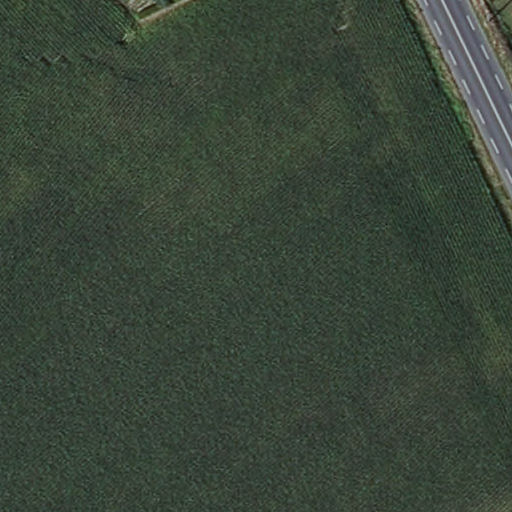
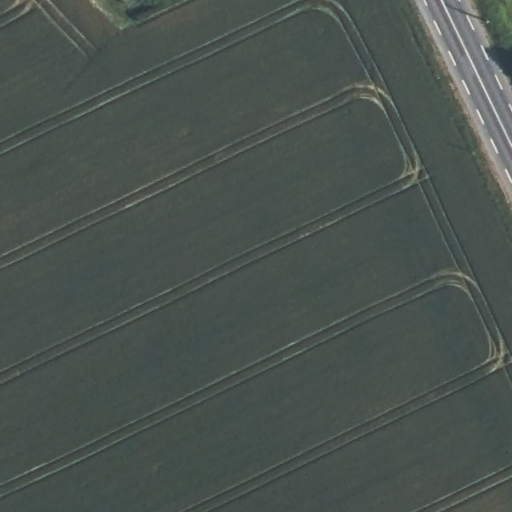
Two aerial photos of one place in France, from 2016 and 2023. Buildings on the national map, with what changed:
[]

